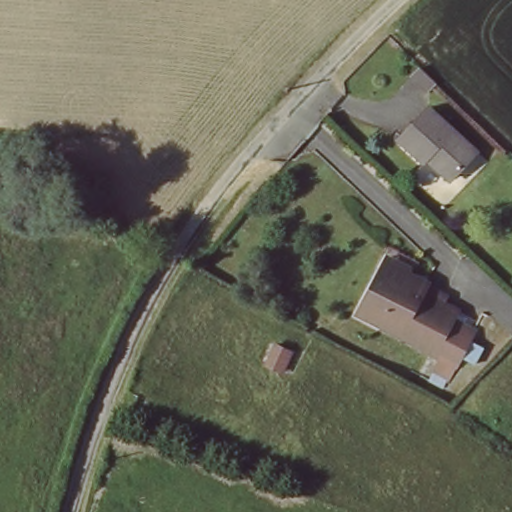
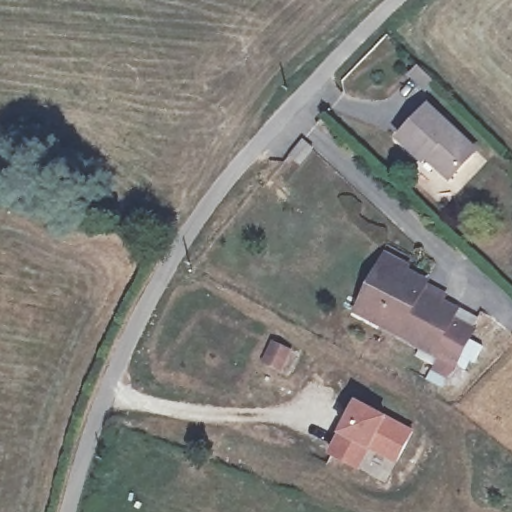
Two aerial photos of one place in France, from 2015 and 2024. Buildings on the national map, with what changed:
unchanged [(477,145),(452,172),(429,151),(425,155),(400,132),(430,100),(477,145)]
unchanged [(359,300),(383,252),(405,263),(402,269),(420,278),(436,287),(432,295),(451,305),(447,312),(469,323),(449,362),(436,355),(437,354),(410,341),(412,338),(375,320),(354,309),(359,300)]
unchanged [(292,352),(283,370),(263,360),(272,342),(292,352)]
new [(341,434),(357,401),(389,417),(415,431),(398,464),(370,450),(359,471),(328,454),(341,434)]

